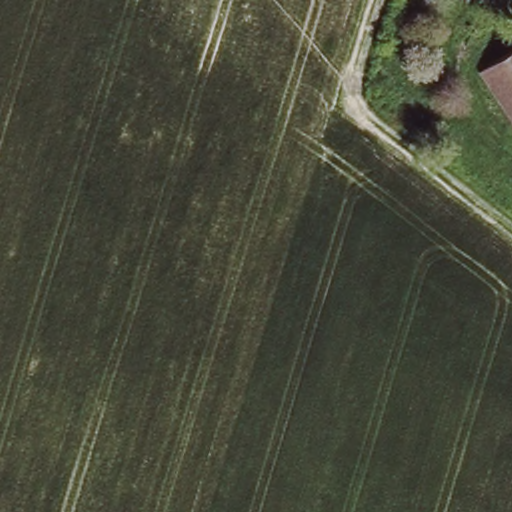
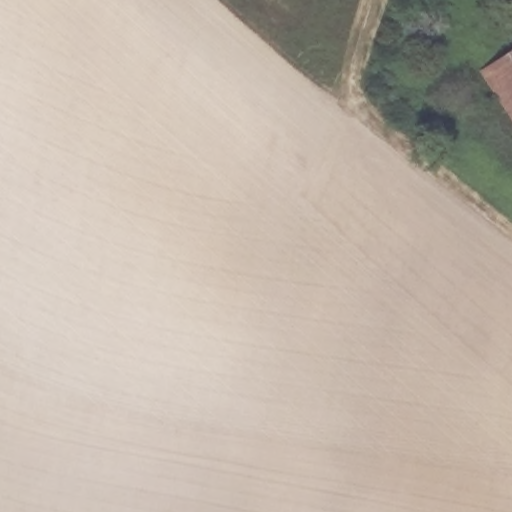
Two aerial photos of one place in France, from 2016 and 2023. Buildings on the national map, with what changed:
unchanged [(512,117),(483,73),(512,54),(512,117)]

